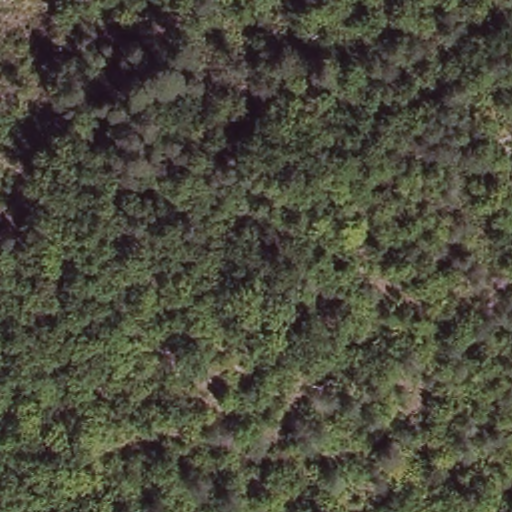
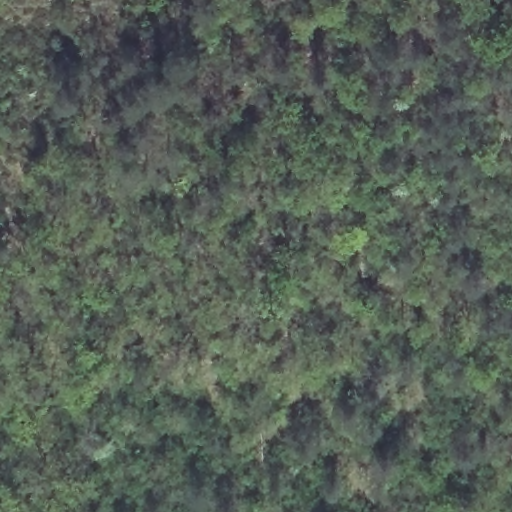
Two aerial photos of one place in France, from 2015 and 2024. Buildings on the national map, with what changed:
[]

